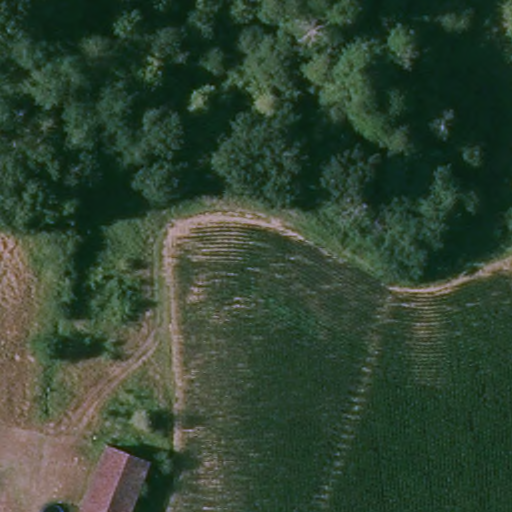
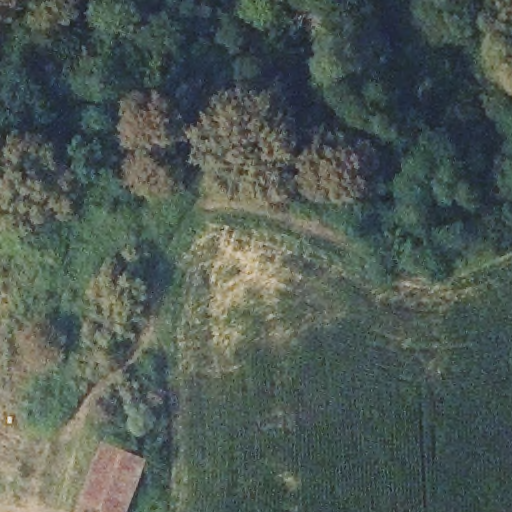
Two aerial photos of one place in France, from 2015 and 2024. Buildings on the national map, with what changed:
unchanged [(153,457),(149,469),(132,512),(82,512),(110,441),(153,457)]

